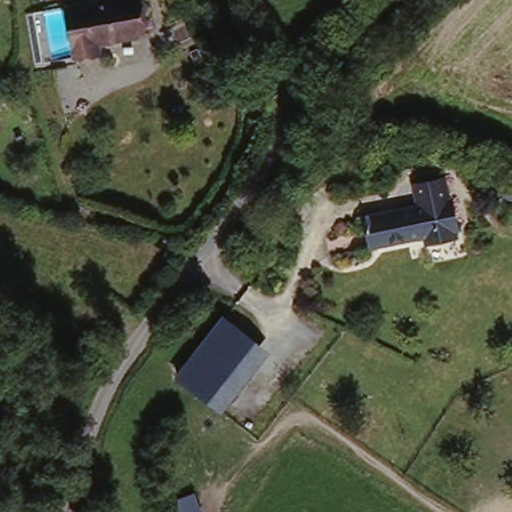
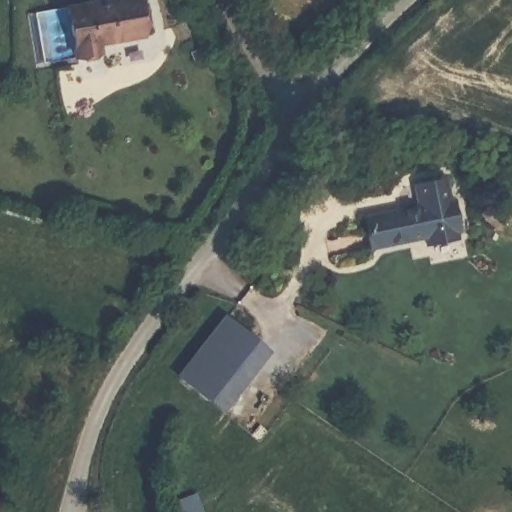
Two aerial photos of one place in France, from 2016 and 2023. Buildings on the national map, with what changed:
unchanged [(135,0),(140,37),(95,44),(96,59),(71,63),(64,7),(109,0),(135,0)]
unchanged [(419,202),(414,178),(444,174),(448,195),(452,194),(457,224),(454,225),(455,234),(424,240),(424,233),(371,244),(364,214),(419,202)]
unchanged [(222,320),(272,352),(223,414),(178,378),(222,320)]

